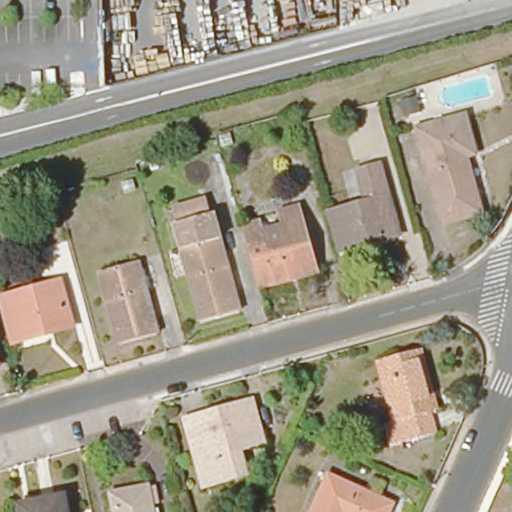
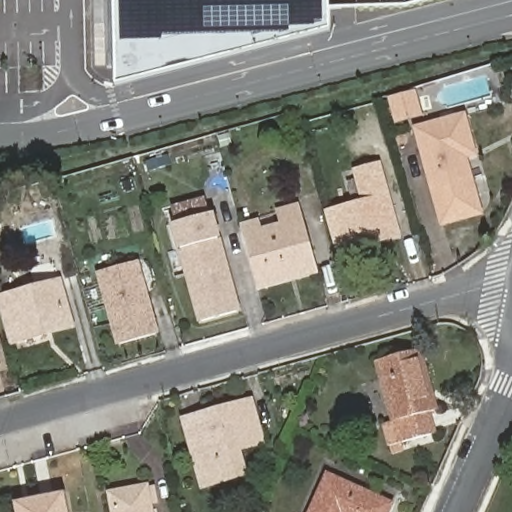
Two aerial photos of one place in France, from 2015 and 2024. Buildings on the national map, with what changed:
new [(115,0),(330,0),(331,29),(117,85),(115,0)]
unchanged [(475,157),(465,159),(480,213),(442,224),(418,132),(465,119),(475,157)]
unchanged [(330,217),(370,206),(363,176),(383,171),(401,241),(343,257),(338,236),(335,237),(330,217)]
unchanged [(242,315),(205,325),(179,226),(185,224),(180,210),(208,202),(212,217),(217,216),(242,315)]
unchanged [(247,235),(265,231),(267,240),(307,231),(320,278),(321,283),(263,298),(262,293),(247,235)]
unchanged [(160,341),(121,351),(103,277),(141,267),(160,341)]
unchanged [(6,346),(0,320),(0,297),(58,282),(70,325),(71,330),(45,336),(6,346)]
unchanged [(438,415),(430,417),(435,439),(390,450),(383,426),(394,423),(377,363),(421,352),(438,415)]
unchanged [(266,447),(223,458),(231,485),(205,491),(186,424),(255,405),(266,447)]
unchanged [(388,512),(310,512),(328,474),(392,502),(388,512)]
unchanged [(150,512),(110,512),(107,496),(145,488),(150,512)]
unchanged [(67,512),(20,512),(20,510),(37,507),(65,502),(67,512)]

